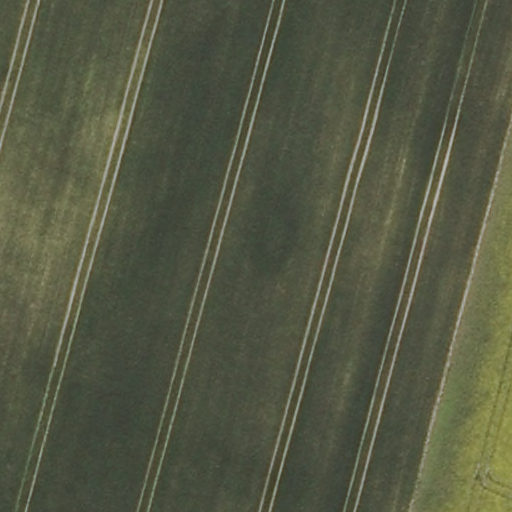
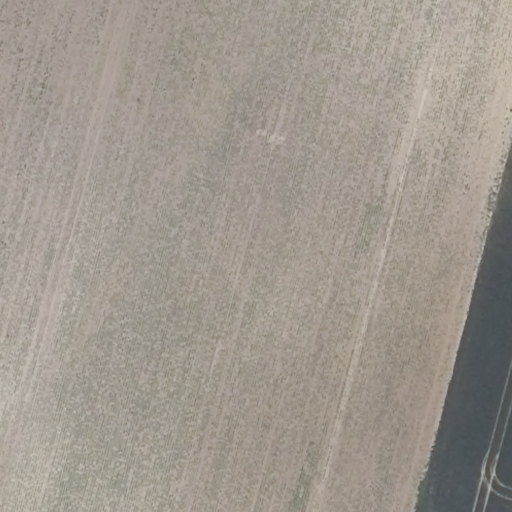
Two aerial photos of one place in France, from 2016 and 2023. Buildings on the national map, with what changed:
[]

